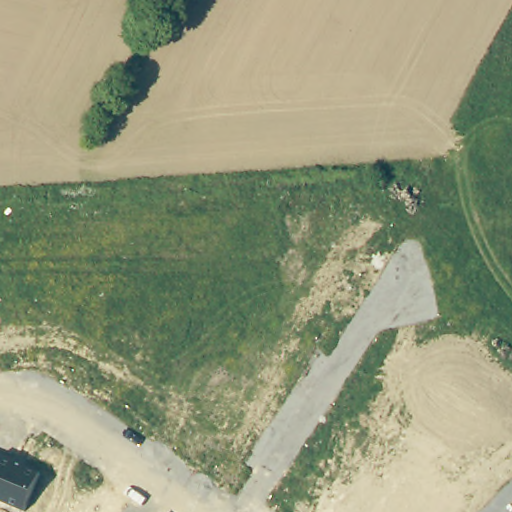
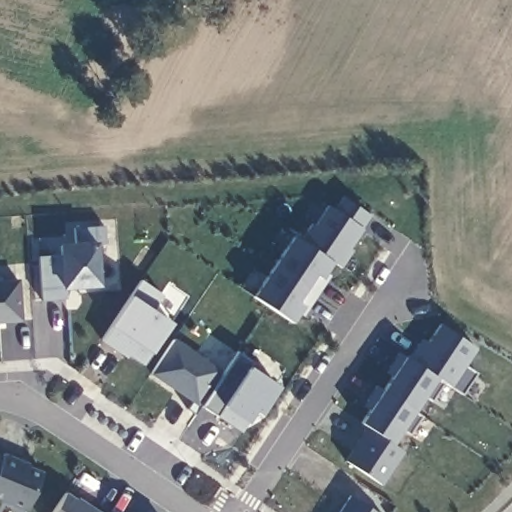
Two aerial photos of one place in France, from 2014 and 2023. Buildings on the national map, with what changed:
new [(339,267),(332,261),(321,277),(315,273),(298,301),(304,305),(292,322),(252,297),(293,234),(299,239),(309,222),(313,224),(327,203),(332,206),(340,194),(372,214),(339,267)]
unchanged [(104,243),(94,243),(98,286),(64,288),(64,297),(40,298),(36,255),(56,254),(55,243),(73,242),(71,226),(104,224),(104,243)]
new [(17,278),(21,321),(0,322),(0,279),(17,278)]
new [(150,308),(171,321),(144,363),(117,346),(115,349),(100,338),(139,278),(161,294),(150,308)]
new [(466,363),(477,371),(461,393),(436,375),(393,444),(403,450),(379,482),(342,458),(363,425),(358,421),(367,410),(362,406),(376,384),(381,390),(390,377),(384,372),(398,352),(405,357),(419,336),(427,341),(438,322),(478,347),(466,363)]
new [(173,338),(221,369),(196,405),(150,373),(173,338)]
new [(249,370),(278,389),(261,412),(255,408),(247,420),(239,414),(229,426),(196,405),(221,369),(235,351),(253,362),(249,370)]
unchanged [(41,472),(24,510),(0,501),(0,454),(41,472)]
new [(74,500),(75,497),(96,512),(50,512),(64,492),(74,500)]

